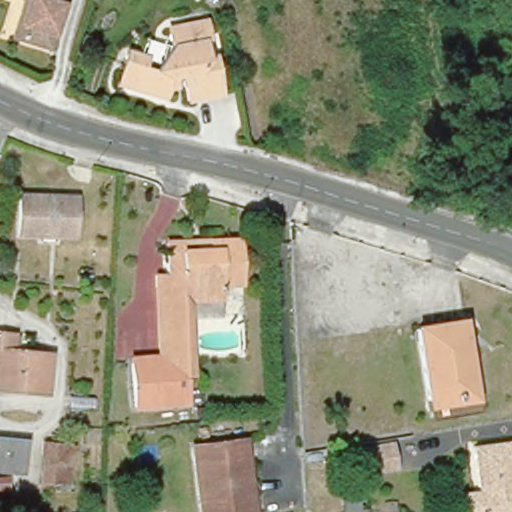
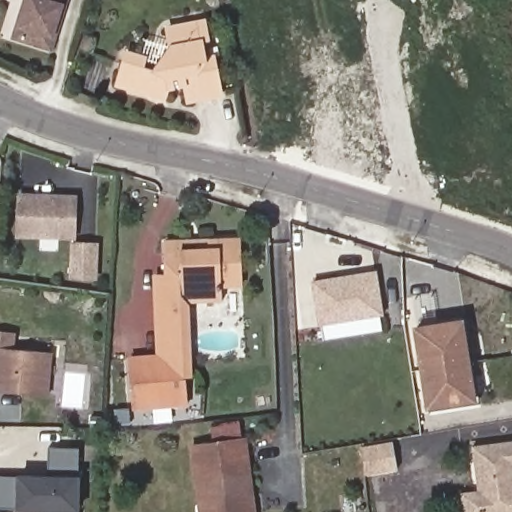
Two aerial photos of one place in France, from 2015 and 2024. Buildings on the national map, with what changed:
unchanged [(21,0),(59,0),(45,45),(11,34),(21,0)]
unchanged [(212,26),(215,45),(211,46),(215,62),(222,61),(229,95),(194,101),(191,89),(175,89),(172,98),(124,87),(133,57),(147,60),(152,40),(179,45),(176,34),(212,26)]
unchanged [(77,197),(75,246),(15,241),(15,192),(77,197)]
unchanged [(239,276),(220,276),(219,290),(177,289),(178,267),(161,266),(162,235),(177,235),(210,236),(240,237),(239,276)]
unchanged [(152,273),(162,273),(161,266),(178,267),(177,289),(219,290),(219,318),(192,318),(196,395),(180,397),(180,349),(156,350),(152,273)]
new [(311,282),(376,270),(383,315),(381,320),(383,331),(324,340),(321,325),(317,323),(311,282)]
unchanged [(428,407),(426,398),(413,327),(458,318),(466,361),(471,398),(428,407)]
unchanged [(12,350),(50,353),(46,393),(0,390),(0,335),(13,336),(12,350)]
unchanged [(156,350),(180,349),(180,397),(131,399),(130,350),(156,350)]
demolished [(67,408),(67,406),(67,397),(92,398),(91,407),(91,410),(67,408)]
unchanged [(192,462),(190,443),(241,440),(248,495),(250,512),(198,512),(196,497),(192,462)]
unchanged [(461,512),(458,492),(475,489),(470,446),(512,440),(512,465),(512,512),(461,512)]
unchanged [(362,447),(393,442),(396,467),(365,472),(362,447)]
demolished [(75,447),(71,480),(39,482),(44,443),(75,447)]
demolished [(20,476),(0,474),(0,445),(22,447),(20,476)]
new [(79,512),(49,512),(49,511),(17,510),(0,509),(0,475),(19,475),(48,476),(50,447),(80,448),(80,476),(79,512)]
demolished [(8,494),(0,495),(0,483),(5,482),(8,494)]

